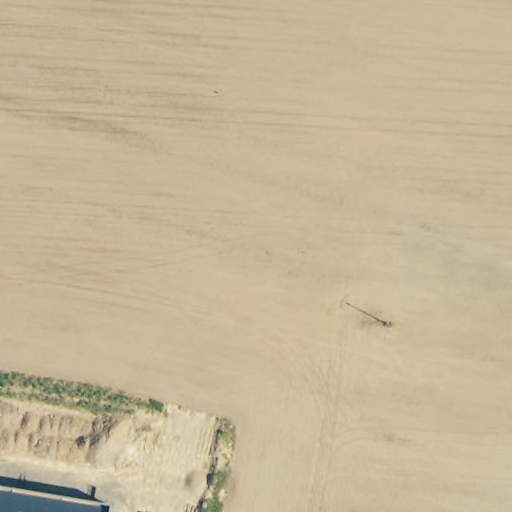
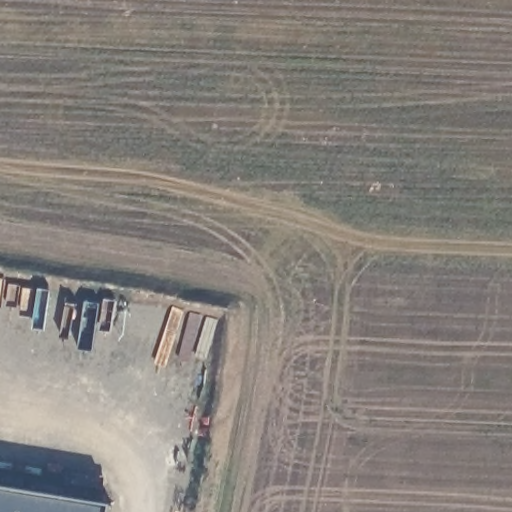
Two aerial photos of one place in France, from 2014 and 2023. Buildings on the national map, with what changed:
unchanged [(110,512),(0,512),(0,489),(111,507),(110,512)]

